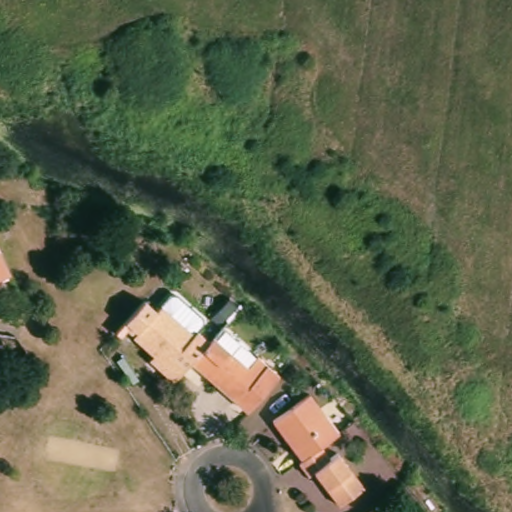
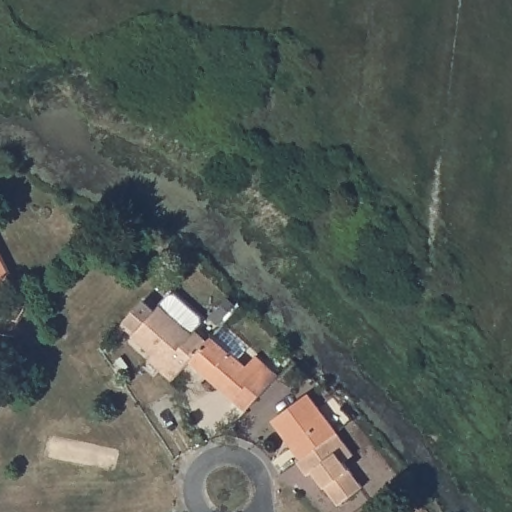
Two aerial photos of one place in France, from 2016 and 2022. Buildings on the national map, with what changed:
unchanged [(0,281),(0,258),(10,277),(0,281)]
unchanged [(148,366),(154,359),(133,342),(160,314),(191,343),(196,339),(206,349),(190,368),(176,384),(173,388),(148,366)]
unchanged [(208,347),(211,343),(246,373),(254,363),(263,371),(277,383),(267,394),(246,418),(190,368),(206,349),(208,347)]
unchanged [(272,426),(308,399),(339,439),(321,453),(303,467),(272,426)]
unchanged [(309,482),(299,469),(303,467),(321,453),(331,464),(339,458),(367,494),(343,512),(316,477),(309,482)]

